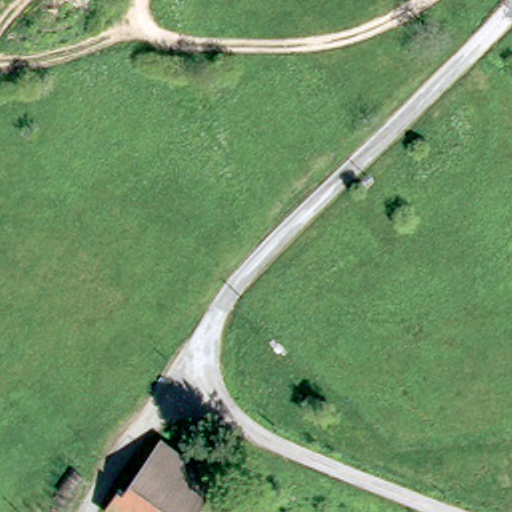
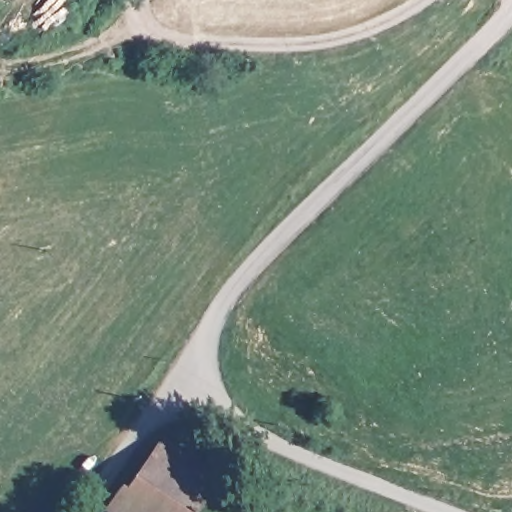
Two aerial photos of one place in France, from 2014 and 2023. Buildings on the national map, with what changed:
unchanged [(149,436),(212,481),(193,507),(199,512),(103,512),(91,505),(106,482),(114,487),(149,436)]

